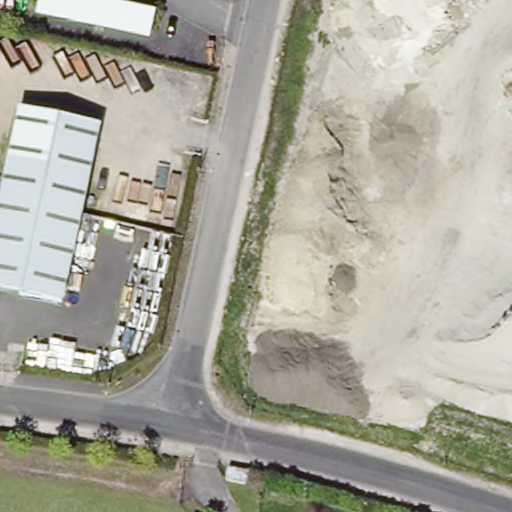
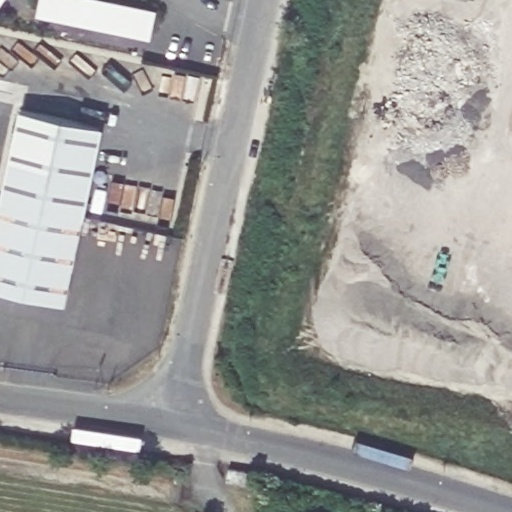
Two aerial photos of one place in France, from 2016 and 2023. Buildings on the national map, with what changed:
unchanged [(36,8),(38,0),(108,0),(154,10),(149,32),(36,8)]
unchanged [(0,223),(25,108),(103,126),(63,303),(0,289),(0,223)]

